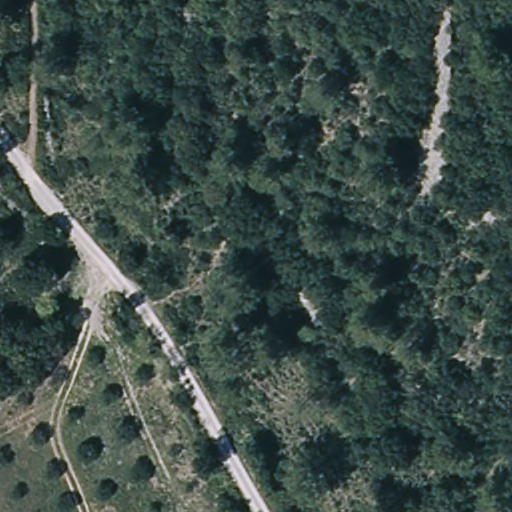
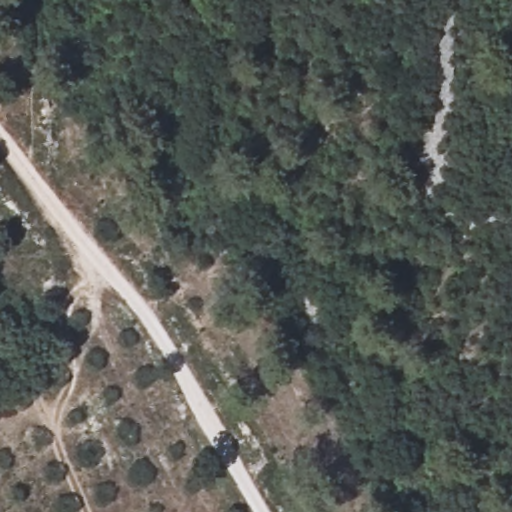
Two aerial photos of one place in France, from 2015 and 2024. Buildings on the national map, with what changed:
[]

